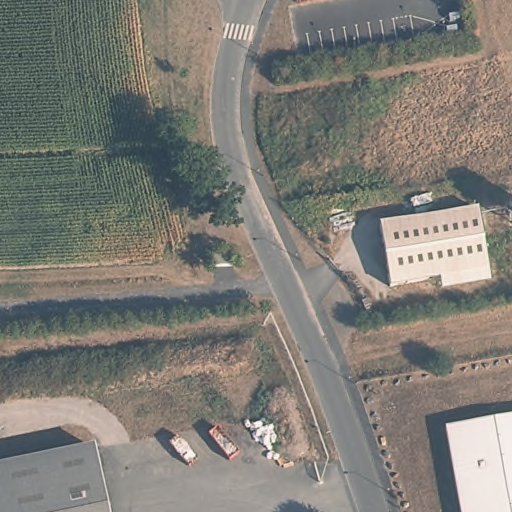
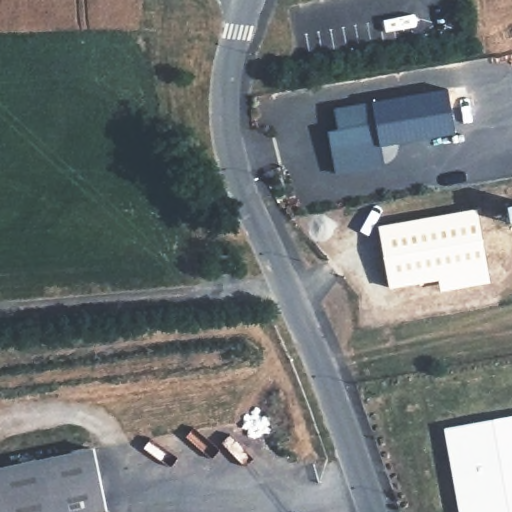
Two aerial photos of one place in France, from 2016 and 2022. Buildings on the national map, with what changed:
new [(374,166),(313,177),(308,150),(305,136),(340,130),(337,110),(373,104),(373,102),(449,89),(456,133),(381,146),(384,164),(374,166)]
unchanged [(381,229),(480,211),(491,271),(391,289),(381,229)]
unchanged [(512,414),(512,512),(460,512),(444,425),(512,414)]
unchanged [(112,512),(0,512),(0,470),(99,451),(112,512)]

